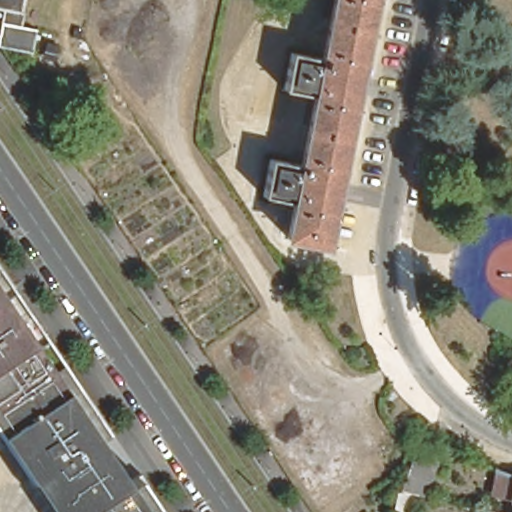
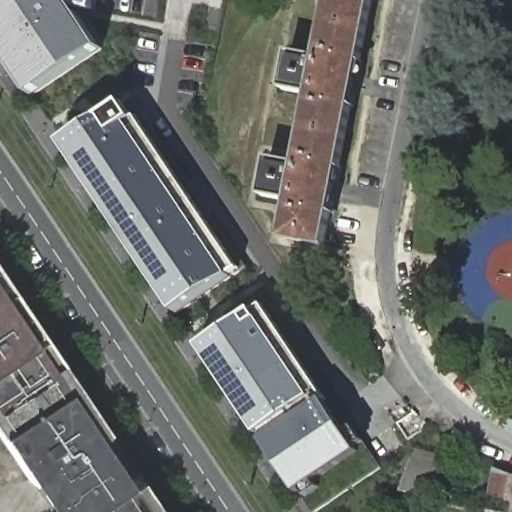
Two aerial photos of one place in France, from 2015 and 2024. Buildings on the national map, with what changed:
demolished [(30,52),(0,46),(0,32),(2,22),(4,10),(0,10),(0,0),(23,0),(17,25),(35,30),(30,52)]
new [(94,12),(76,9),(103,49),(71,70),(32,96),(0,50),(0,0),(97,0),(94,12)]
unchanged [(357,79),(354,95),(336,182),(333,200),(324,245),(286,238),(288,232),(294,203),(287,201),(262,196),(268,159),(301,165),(302,161),(309,126),(314,97),(308,96),(282,90),(290,52),(322,59),(323,55),(330,19),(334,0),(373,0),(357,79)]
new [(133,98),(243,264),(175,310),(64,144),(133,98)]
unchanged [(147,512),(48,512),(0,440),(0,293),(147,512)]
new [(377,470),(313,512),(306,512),(197,347),(266,301),(377,470)]
unchanged [(437,456),(423,496),(422,496),(399,491),(413,451),(437,456)]
unchanged [(488,496),(494,468),(496,470),(498,470),(499,471),(501,471),(504,473),(507,474),(509,475),(512,475),(512,512),(508,512),(510,501),(493,497),(488,496)]
unchanged [(498,512),(488,512),(488,510),(490,510),(498,512)]

